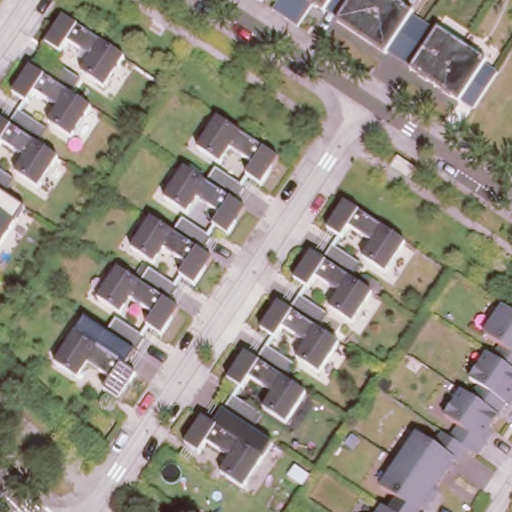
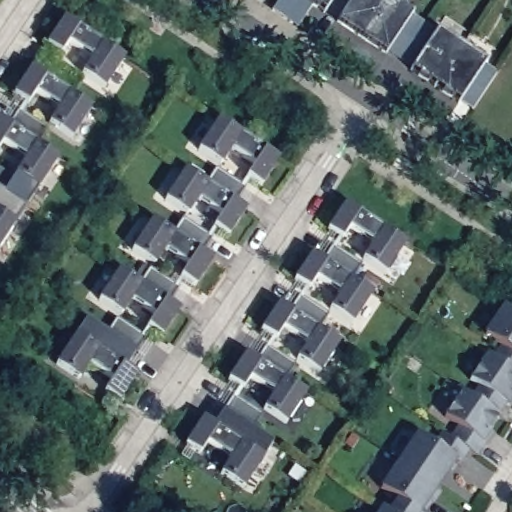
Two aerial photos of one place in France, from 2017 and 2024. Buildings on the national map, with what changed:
unchanged [(419,17),(431,26),(440,30),(485,61),(497,71),(471,107),(457,99),(412,70),(405,63),(392,55),(383,52),(340,25),(325,12),(310,3),(297,25),(273,8),(279,0),(391,0),(409,12),(419,17)]
unchanged [(126,55),(105,83),(87,70),(95,59),(68,40),(60,54),(46,49),(65,17),(126,55)]
unchanged [(81,76),(70,90),(93,105),(74,134),(52,122),(64,103),(37,87),(27,102),(13,92),(34,66),(47,75),(53,58),(81,76)]
unchanged [(48,126),(40,141),(62,155),(41,185),(18,170),(30,155),(3,139),(0,144),(0,118),(11,125),(21,109),(48,126)]
unchanged [(280,156),(261,183),(250,176),(258,163),(232,147),(221,162),(199,150),(220,120),(280,156)]
unchanged [(18,175),(6,192),(25,205),(0,244),(0,166),(18,175)]
unchanged [(245,186),(235,200),(249,209),(230,234),(217,225),(226,212),(199,195),(188,210),(167,200),(188,170),(210,182),(217,169),(245,186)]
unchanged [(409,237),(386,270),(365,258),(377,241),(352,227),(345,236),(326,230),(345,202),(409,237)]
unchanged [(213,235),(203,251),(215,257),(195,285),(182,279),(194,261),(167,248),(155,263),(130,250),(154,219),(175,231),(185,219),(213,235)]
unchanged [(362,262),(354,274),(378,288),(351,321),(331,310),(345,287),(318,274),(308,285),(295,281),(315,252),(326,257),(333,245),(362,262)]
unchanged [(180,287),(168,299),(182,308),(165,332),(150,324),(160,311),(133,296),(123,310),(98,297),(120,267),(142,282),(153,270),(180,287)]
unchanged [(330,312),(320,326),(342,340),(318,371),(295,358),(307,341),(285,327),(276,339),(258,330),(281,302),(293,307),(300,294),(330,312)]
unchanged [(505,306),(512,311),(512,354),(483,336),(505,306)]
unchanged [(146,335),(125,363),(139,373),(118,400),(106,390),(116,375),(90,358),(77,375),(55,361),(90,319),(110,333),(120,319),(146,335)]
unchanged [(297,362),(286,375),(312,389),(288,421),(267,410),(280,392),(253,374),(243,389),(225,381),(247,350),(260,358),(269,345),(297,362)]
unchanged [(490,352),(512,364),(512,400),(510,403),(470,382),(490,352)]
unchanged [(380,488),(417,434),(426,438),(439,429),(451,435),(456,424),(443,418),(462,390),(504,416),(480,452),(467,448),(423,512),(415,512),(380,488)]
unchanged [(265,413),(255,429),(273,441),(245,486),(221,473),(235,455),(208,440),(200,451),(183,443),(205,413),(216,421),(235,395),(265,413)]
unchanged [(381,506),(392,512),(377,512),(381,506)]

